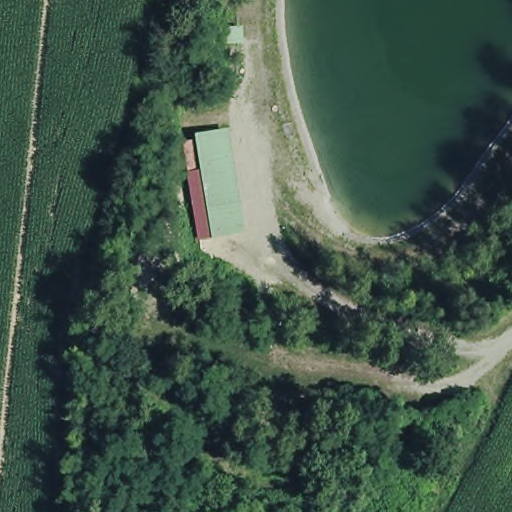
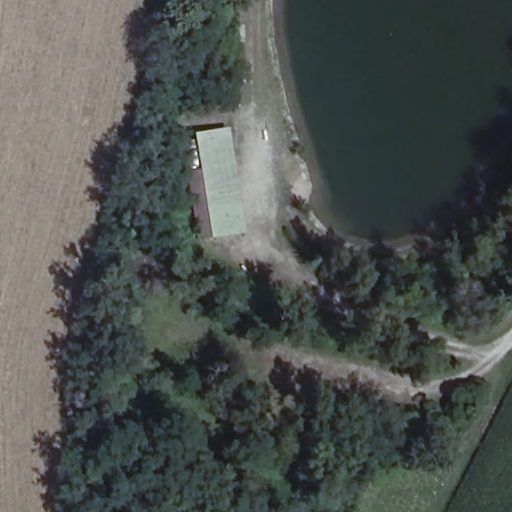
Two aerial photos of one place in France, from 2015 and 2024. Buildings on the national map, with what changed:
unchanged [(215,242),(203,173),(190,175),(185,145),(198,142),(197,135),(231,131),(247,235),(215,242)]

